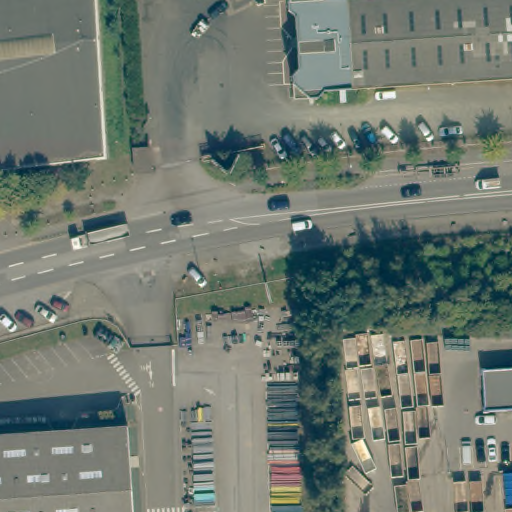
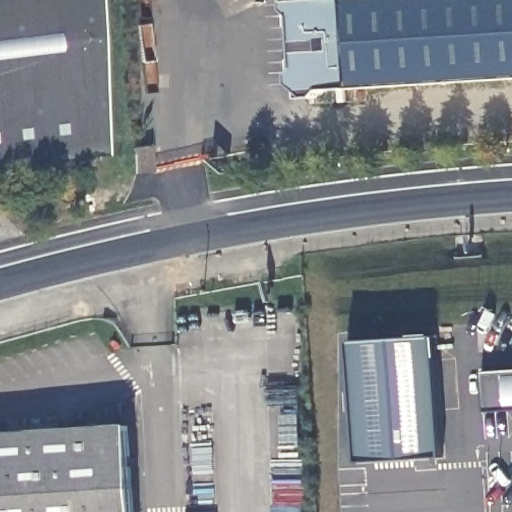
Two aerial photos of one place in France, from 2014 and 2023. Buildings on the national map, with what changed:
unchanged [(0,174),(0,0),(97,0),(107,162),(0,174)]
unchanged [(326,89),(311,89),(309,82),(306,82),(299,75),(298,67),(303,61),(301,6),(295,2),(295,0),(512,0),(512,69),(329,80),(326,89)]
unchanged [(153,151),(155,174),(153,174),(136,177),(134,152),(153,151)]
new [(358,464),(350,343),(434,339),(439,459),(358,464)]
unchanged [(483,373),(512,371),(512,413),(486,415),(481,416),(481,411),(482,411),(479,378),(478,378),(478,373),(483,372),(483,373)]
unchanged [(133,512),(0,512),(0,427),(128,421),(133,512)]

